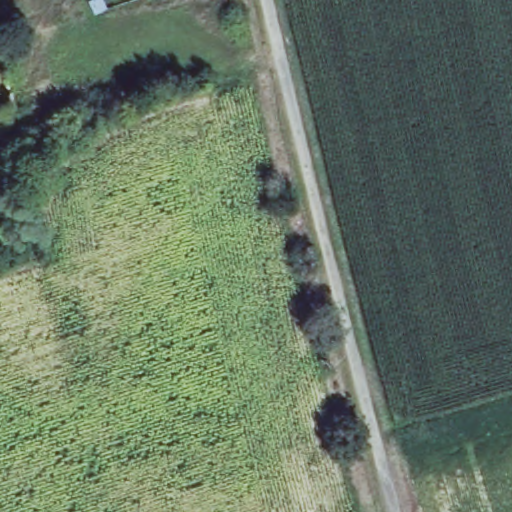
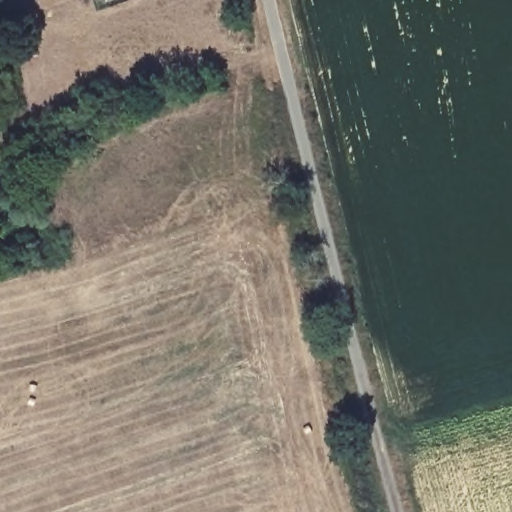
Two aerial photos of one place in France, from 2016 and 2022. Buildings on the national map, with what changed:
unchanged [(5,70),(16,107),(0,112),(0,72),(5,70)]

